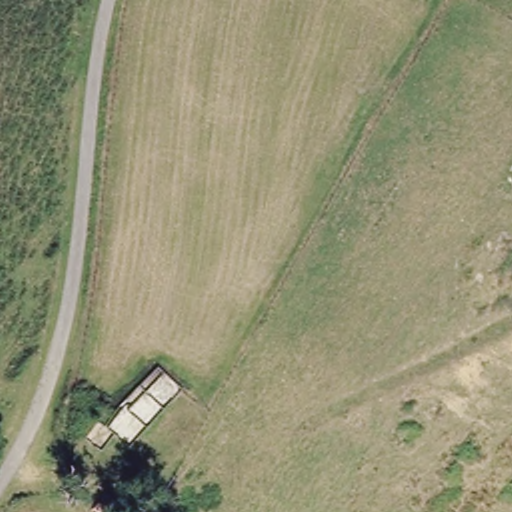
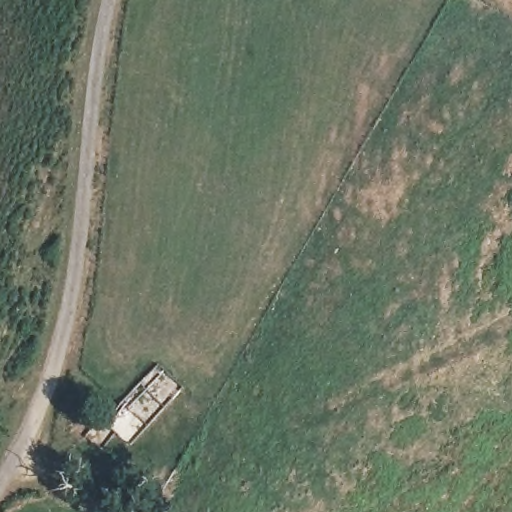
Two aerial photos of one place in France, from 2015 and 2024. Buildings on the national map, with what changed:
unchanged [(181,385),(125,449),(109,427),(132,397),(162,367),(181,385)]

